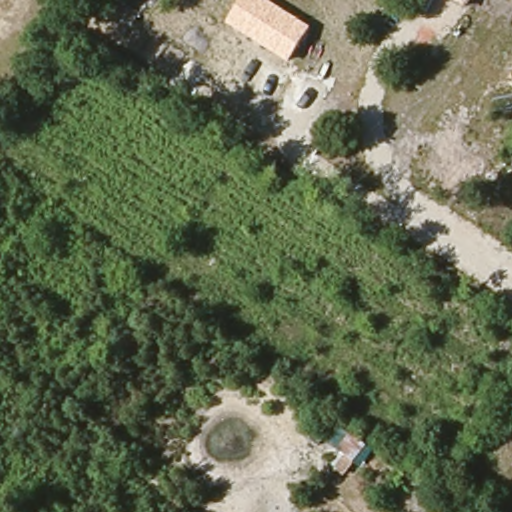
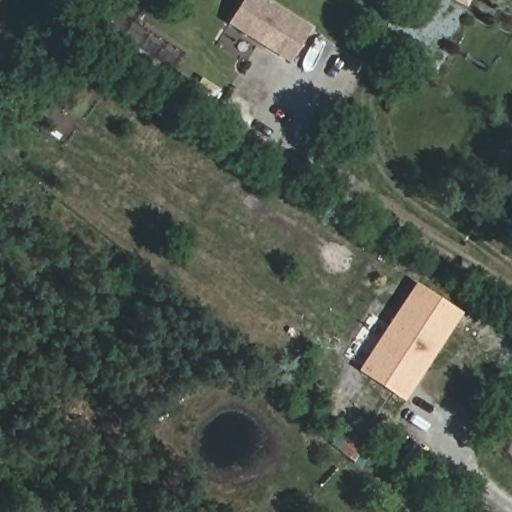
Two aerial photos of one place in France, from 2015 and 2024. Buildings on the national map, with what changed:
unchanged [(228,23),(243,0),(268,0),(311,26),(289,61),(228,23)]
unchanged [(454,0),(471,0),(467,8),(454,0)]
new [(416,282),(463,313),(405,402),(358,371),(416,282)]

